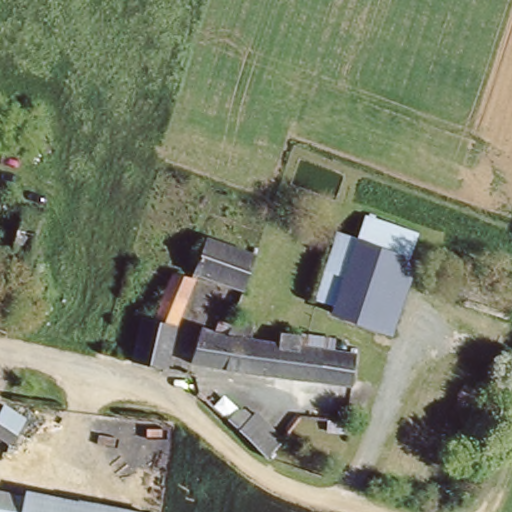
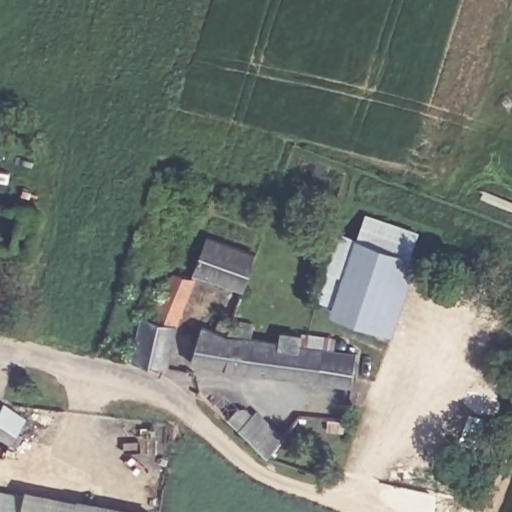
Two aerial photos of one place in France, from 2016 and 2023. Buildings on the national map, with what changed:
unchanged [(362,214),(408,228),(401,254),(354,238),(362,214)]
unchanged [(333,231),(354,238),(332,302),(312,296),(333,231)]
unchanged [(202,234),(253,252),(240,286),(189,270),(202,234)]
unchanged [(328,311),(332,302),(354,238),(401,254),(412,258),(387,330),(328,311)]
unchanged [(151,316),(170,271),(187,276),(163,366),(130,358),(139,312),(151,316)]
unchanged [(215,334),(218,322),(233,324),(255,327),(251,339),(281,343),(284,334),(305,336),(336,340),(335,351),(356,354),(353,387),(191,365),(200,332),(215,334)]
unchanged [(27,416),(12,442),(0,435),(0,413),(6,402),(27,416)]
unchanged [(238,407),(240,406),(243,406),(247,408),(250,410),(252,412),(256,409),(286,439),(270,457),(226,417),(238,407)]
unchanged [(345,421),(342,431),(328,427),(330,420),(345,421)]
unchanged [(22,512),(0,512),(0,490),(25,494),(22,512)]
unchanged [(115,512),(22,512),(25,494),(115,512)]

